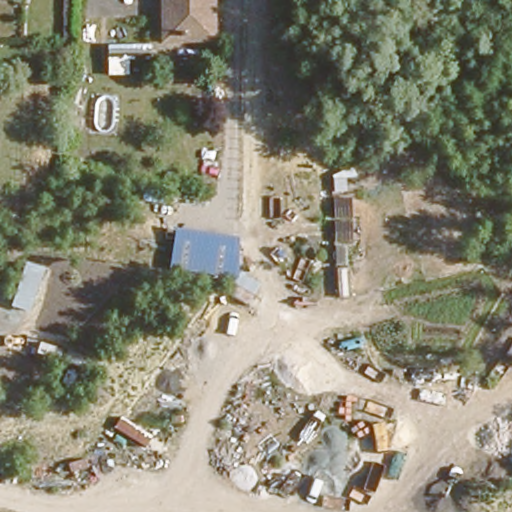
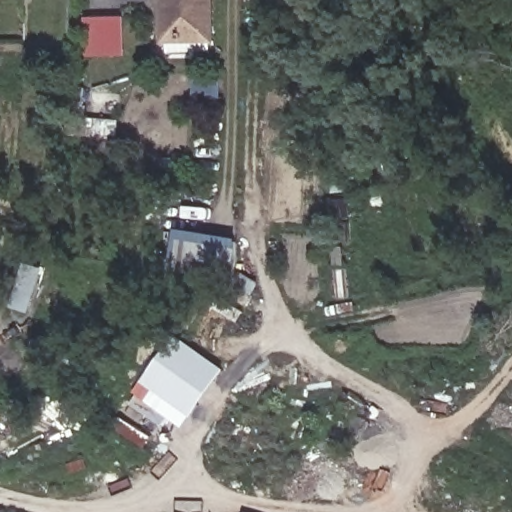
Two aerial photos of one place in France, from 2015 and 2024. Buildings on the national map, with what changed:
unchanged [(161,42),(162,0),(218,0),(218,42),(161,42)]
new [(86,57),(85,17),(124,16),(125,57),(86,57)]
new [(224,77),(223,102),(193,101),(194,76),(224,77)]
unchanged [(237,279),(168,272),(175,228),(238,237),(237,279)]
new [(182,427),(169,418),(162,427),(129,403),(136,395),(133,392),(176,333),(225,368),(182,427)]

